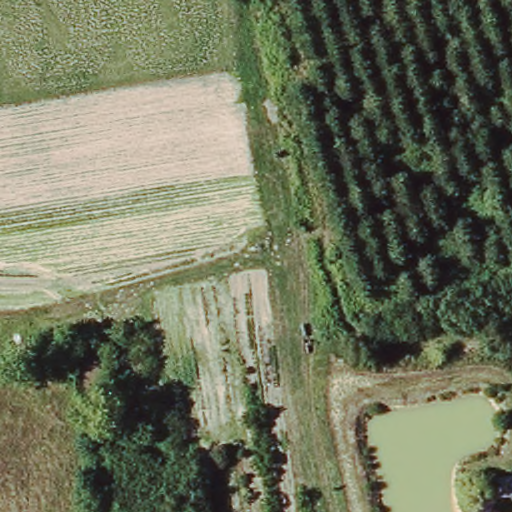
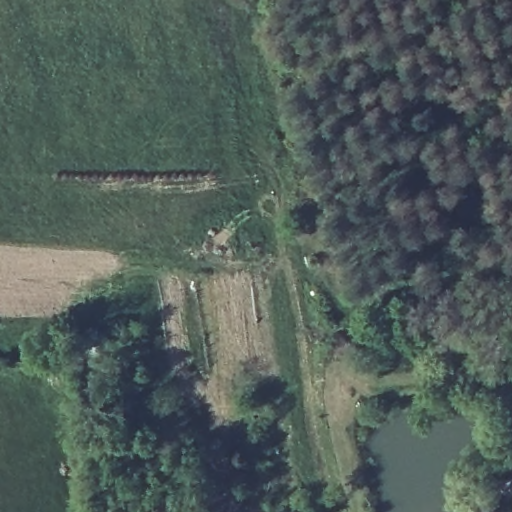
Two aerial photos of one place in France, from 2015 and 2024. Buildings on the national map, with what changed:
unchanged [(496,476),(512,476),(512,501),(495,500),(496,476)]

